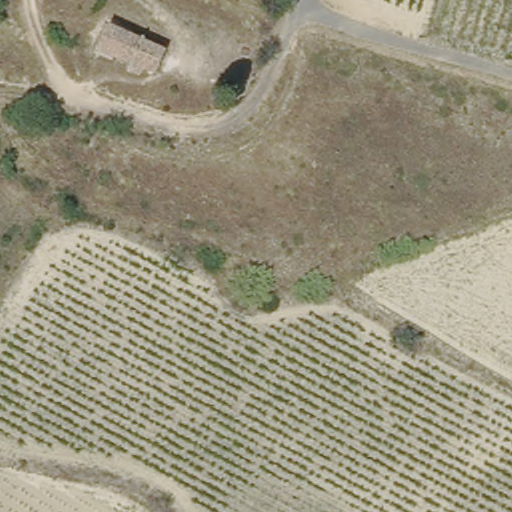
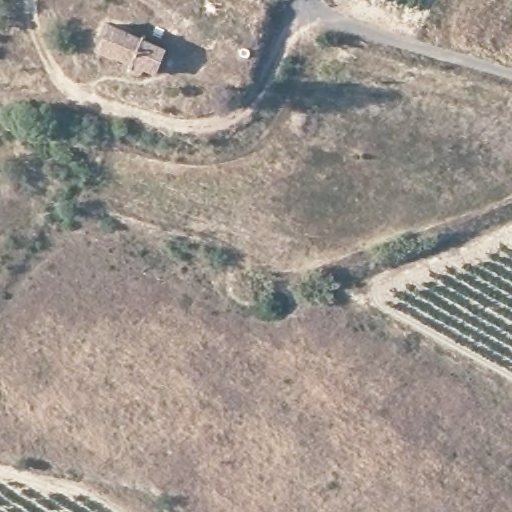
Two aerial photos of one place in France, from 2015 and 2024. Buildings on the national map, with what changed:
unchanged [(122,32),(176,56),(167,76),(113,51),(122,32)]

